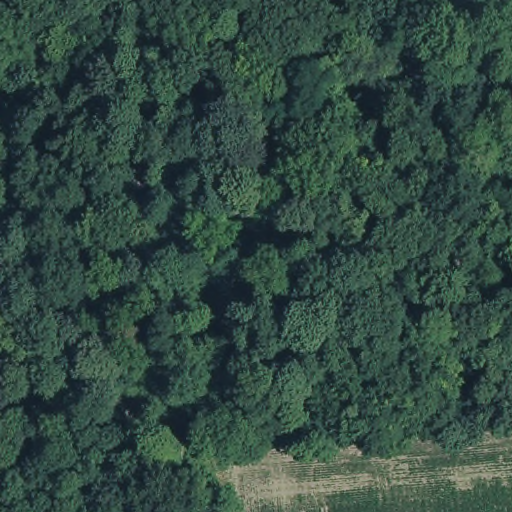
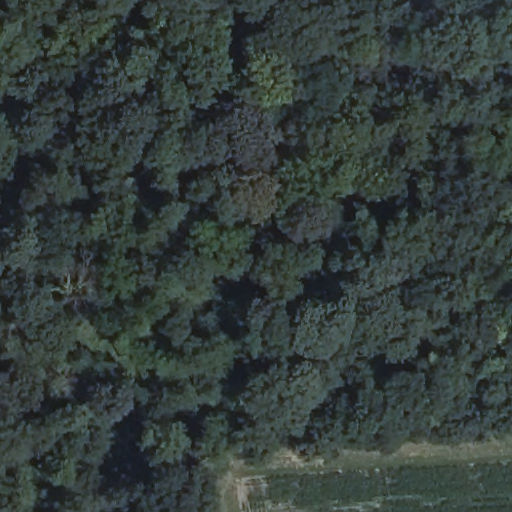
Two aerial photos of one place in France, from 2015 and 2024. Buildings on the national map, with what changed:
unchanged [(236,334),(222,370),(197,377),(179,342),(201,313),(236,334)]

